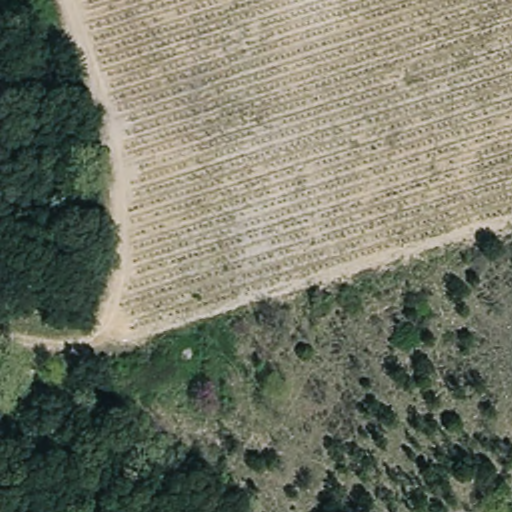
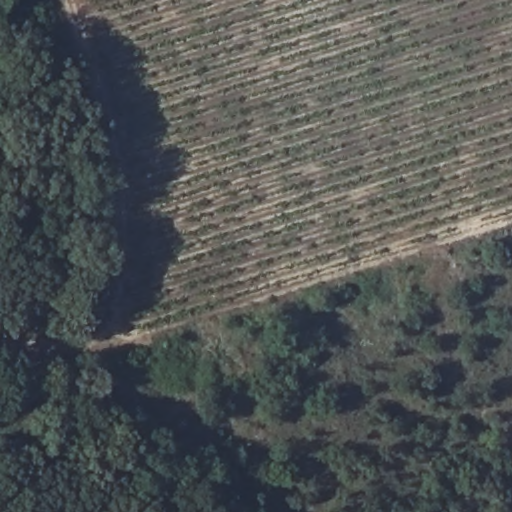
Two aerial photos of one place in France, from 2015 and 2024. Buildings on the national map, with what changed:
[]

